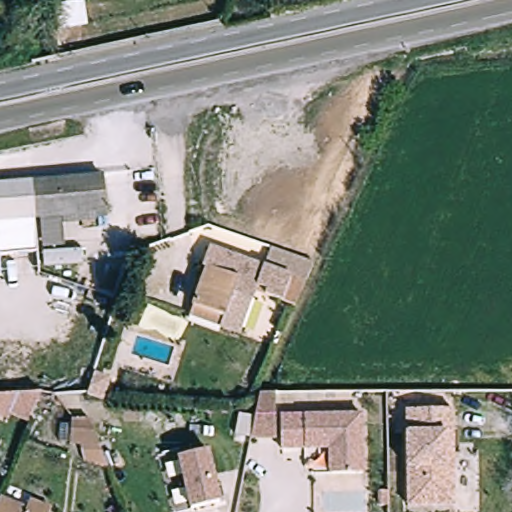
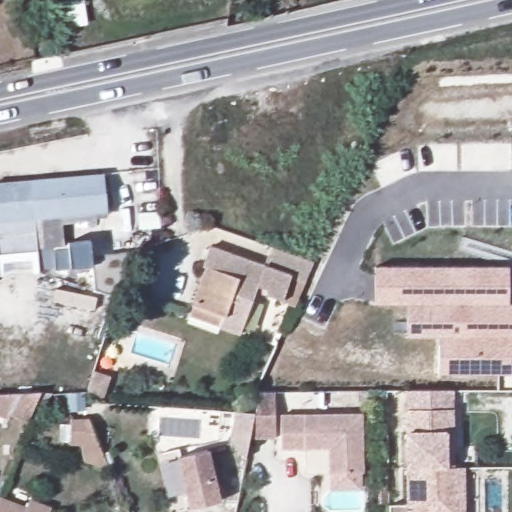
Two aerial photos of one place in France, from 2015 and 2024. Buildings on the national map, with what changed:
unchanged [(58,49),(52,3),(73,0),(84,0),(87,21),(96,20),(100,41),(58,49)]
unchanged [(112,217),(73,221),(74,245),(24,251),(23,246),(0,247),(0,178),(109,169),(112,217)]
unchanged [(194,312),(214,262),(208,260),(214,243),(296,272),(287,297),(270,290),(272,285),(263,281),(246,330),(194,312)]
new [(127,251),(114,296),(92,290),(89,256),(127,251)]
new [(439,375),(439,337),(409,337),(409,303),(377,303),(377,267),(509,265),(509,303),(512,303),(512,374),(439,375)]
unchanged [(251,438),(259,392),(275,391),(275,438),(251,438)]
unchanged [(39,395),(38,398),(29,422),(8,414),(16,395),(39,395)]
unchanged [(454,505),(408,505),(408,409),(455,410),(454,451),(454,472),(454,505)]
new [(236,411),(254,413),(246,458),(231,441),(236,411)]
unchanged [(282,445),(283,412),(363,413),(363,471),(330,471),(331,446),(305,445),(282,445)]
unchanged [(107,467),(80,472),(70,423),(73,422),(88,420),(107,467)]
unchanged [(209,447),(220,500),(191,505),(181,453),(209,447)]
unchanged [(30,497),(55,507),(52,512),(0,512),(0,495),(25,505),(30,497)]

